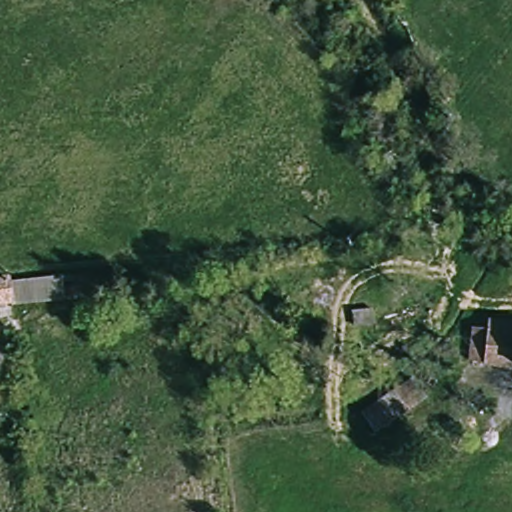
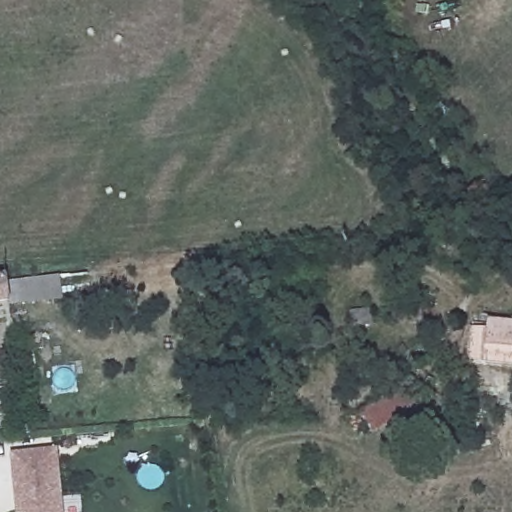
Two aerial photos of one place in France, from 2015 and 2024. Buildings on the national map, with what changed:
unchanged [(10,276),(11,288),(13,305),(0,306),(0,277),(10,276)]
unchanged [(465,362),(466,357),(469,328),(471,328),(485,330),(486,321),(512,324),(512,368),(472,363),(465,362)]
unchanged [(361,426),(356,422),(354,419),(406,382),(421,404),(376,435),(361,426)]
new [(56,451),(61,512),(16,512),(16,507),(15,495),(11,455),(56,451)]

